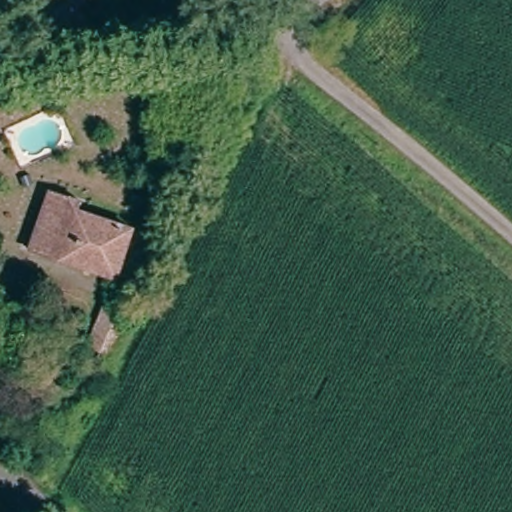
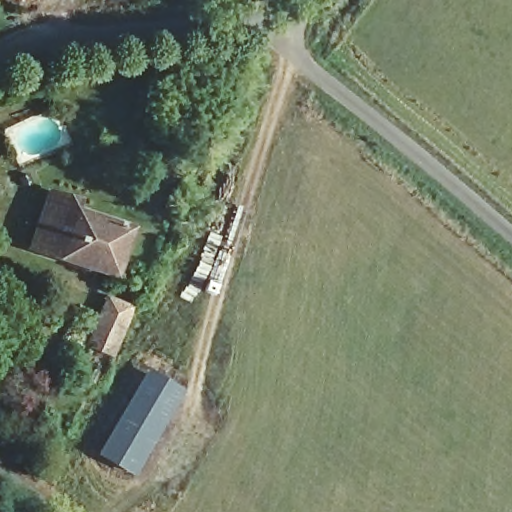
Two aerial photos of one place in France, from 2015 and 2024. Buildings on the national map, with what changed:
unchanged [(34,196),(76,207),(92,212),(91,221),(146,236),(131,287),(17,252),(34,196)]
unchanged [(95,307),(124,317),(118,332),(105,368),(75,357),(90,321),(95,307)]
new [(149,367),(189,392),(135,478),(95,455),(149,367)]

